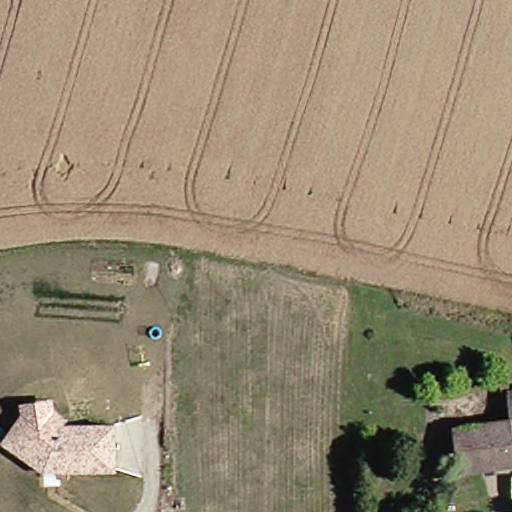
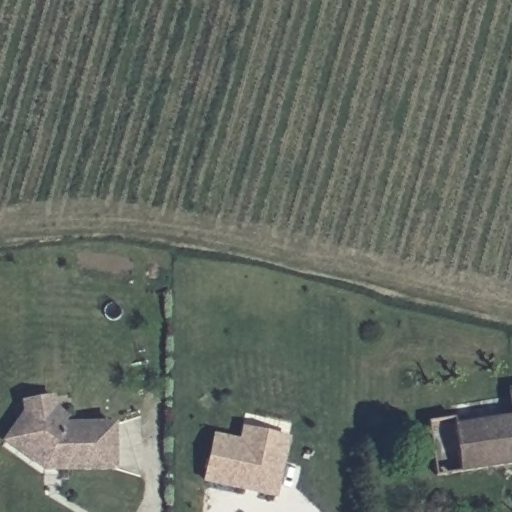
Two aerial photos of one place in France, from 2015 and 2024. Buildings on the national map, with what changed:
unchanged [(512,387),(512,394),(510,387),(512,387)]
unchanged [(119,470),(49,472),(14,450),(8,445),(28,417),(26,407),(56,402),(58,412),(80,427),(118,426),(119,470)]
unchanged [(512,417),(512,463),(466,471),(459,422),(512,417)]
new [(208,476),(219,432),(245,438),(247,426),(263,428),(292,436),(280,495),(263,491),(251,488),(208,476)]

